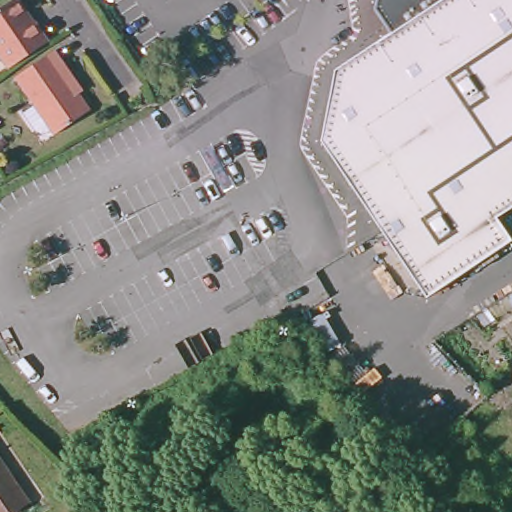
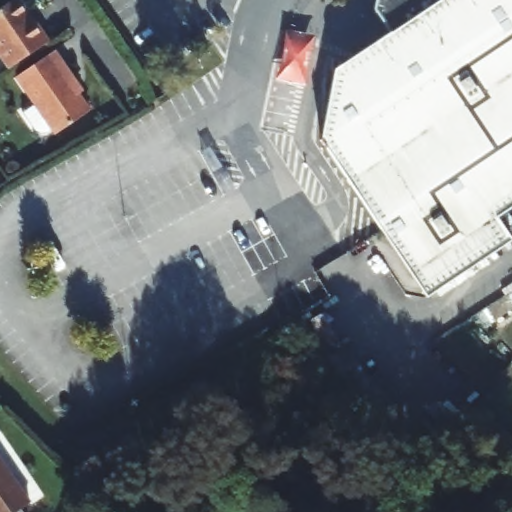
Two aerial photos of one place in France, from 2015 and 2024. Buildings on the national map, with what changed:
unchanged [(0,3),(4,0),(8,0),(25,25),(28,23),(42,44),(4,69),(0,64),(0,3)]
unchanged [(490,216),(505,240),(421,297),(316,141),(330,70),(384,33),(368,9),(370,0),(512,0),(512,202),(498,211),(490,216)]
unchanged [(26,130),(12,110),(21,105),(22,107),(27,104),(9,77),(47,52),(65,79),(61,82),(81,111),(47,134),(44,129),(32,133),(26,130)]
unchanged [(87,121),(53,143),(50,138),(84,115),(87,121)]
unchanged [(233,185),(222,191),(201,154),(212,148),(233,185)]
unchanged [(339,343),(326,351),(307,320),(320,312),(339,343)]
unchanged [(18,512),(0,512),(0,462),(29,505),(18,512)]

